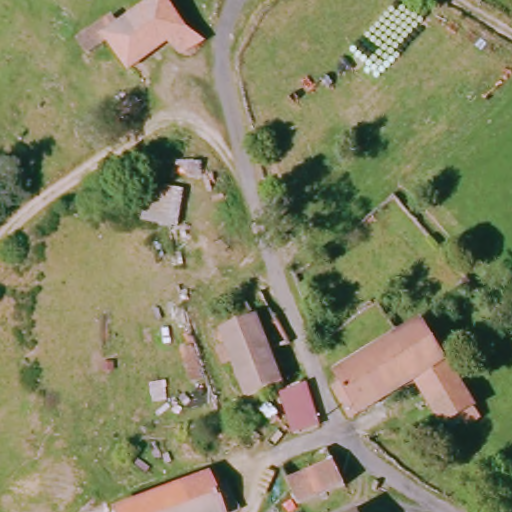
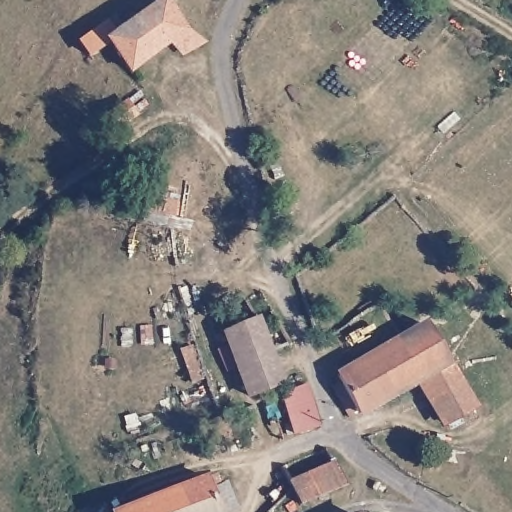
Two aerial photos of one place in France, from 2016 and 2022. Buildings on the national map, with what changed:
unchanged [(168,44),(126,75),(106,44),(85,59),(76,42),(108,20),(115,29),(117,31),(159,0),(161,0),(183,34),(195,45),(179,59),(168,44)]
unchanged [(286,343),(266,354),(277,382),(247,395),(218,328),(246,315),(239,299),(254,289),(282,333),(286,343)]
unchanged [(452,419),(424,374),(355,412),(338,382),(343,375),(340,368),(403,333),(427,319),(480,403),(452,419)]
unchanged [(317,426),(290,435),(275,393),(300,380),(317,426)]
unchanged [(340,486),(294,506),(285,480),(331,463),(340,486)]
unchanged [(207,489),(221,483),(233,511),(230,512),(117,512),(127,508),(202,478),(207,489)]

